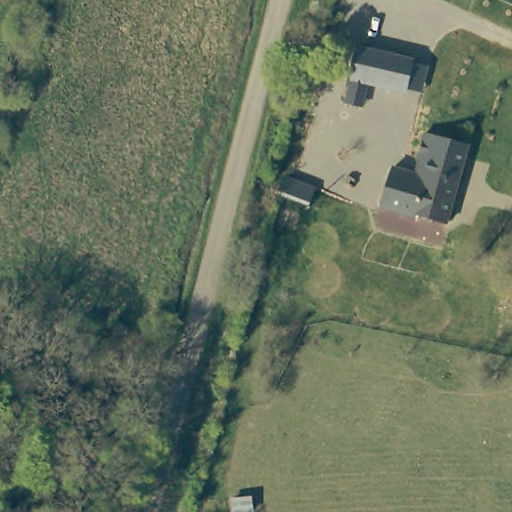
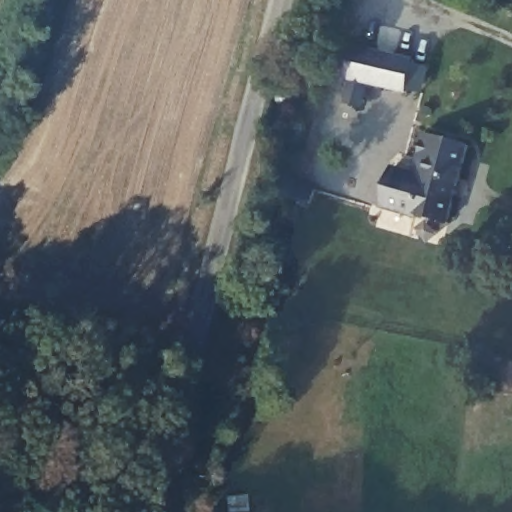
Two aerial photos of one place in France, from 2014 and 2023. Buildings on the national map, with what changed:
unchanged [(347,111),(354,80),(361,57),(408,68),(402,93),(368,83),(361,115),(347,111)]
unchanged [(289,93),(291,98),(290,103),(286,107),(282,107),(277,105),(274,100),(275,95),(280,91),(285,90),(289,93)]
unchanged [(426,130),(470,142),(459,182),(426,174),(432,153),(420,150),(426,130)]
unchanged [(392,166),(415,171),(420,150),(432,153),(426,174),(459,182),(450,221),(381,202),(392,166)]

